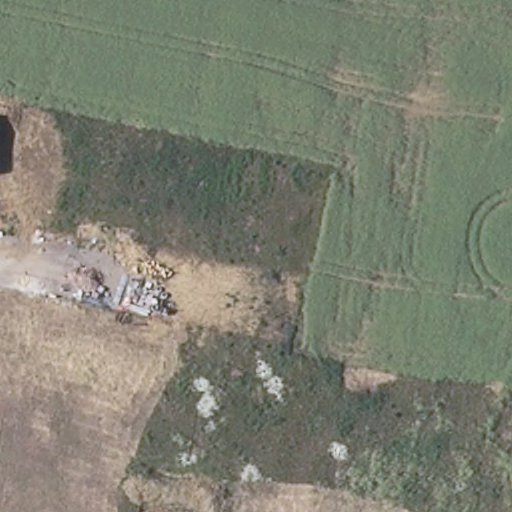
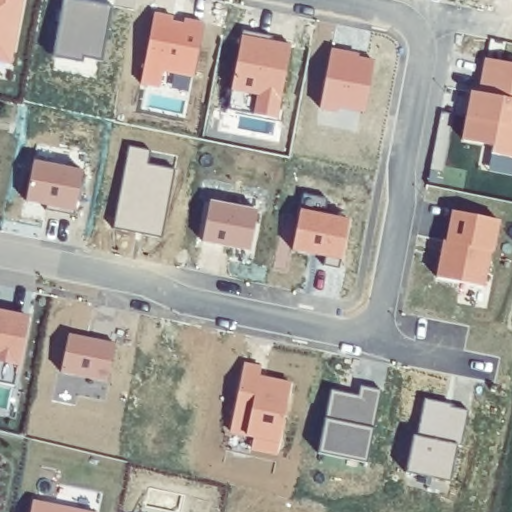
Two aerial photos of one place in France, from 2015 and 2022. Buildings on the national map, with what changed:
new [(13,65),(0,62),(0,0),(24,0),(13,65)]
new [(112,7),(102,61),(84,57),(83,62),(55,56),(66,0),(76,0),(112,7)]
new [(156,13),(205,22),(195,76),(164,70),(160,86),(142,82),(156,13)]
new [(290,46),(277,117),(257,114),(259,95),(234,90),(244,37),(290,46)]
new [(357,53),(357,57),(372,61),(365,112),(338,106),(337,112),(322,108),(333,50),(357,53)]
new [(477,85),(483,50),(512,55),(512,150),(488,145),(490,137),(460,133),(465,108),(469,83),(477,85)]
new [(150,151),(148,164),(175,169),(162,238),(113,229),(130,147),(150,151)]
new [(82,172),(75,208),(28,200),(36,162),(82,172)]
new [(212,201),(259,210),(252,250),(204,242),(212,201)]
new [(442,232),(444,233),(450,202),(496,212),(490,243),(487,242),(480,279),(434,269),(442,232)]
new [(348,221),(342,259),(295,249),(303,211),(348,221)]
new [(25,318),(12,387),(0,385),(0,313),(25,318)]
new [(114,346),(109,383),(63,373),(71,336),(114,346)]
new [(241,357),(258,360),(255,374),(263,376),(265,371),(288,376),(274,446),(248,441),(247,446),(224,441),(227,424),(241,357)]
new [(360,398),(362,389),(378,393),(367,462),(322,452),(333,392),(360,398)]
new [(452,404),(452,407),(468,411),(462,444),(458,444),(451,480),(408,472),(415,435),(419,435),(426,399),(452,404)]
new [(79,512),(28,512),(30,502),(79,512)]

